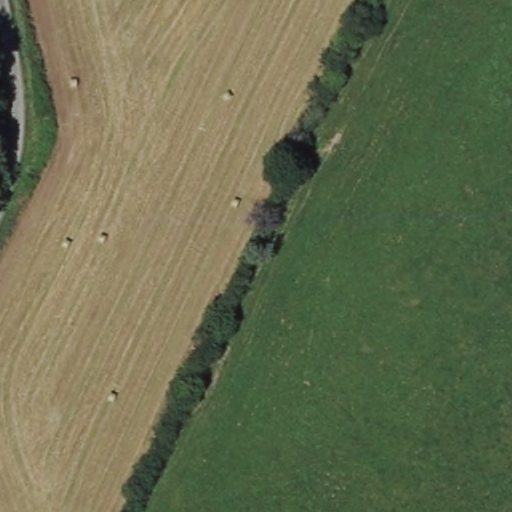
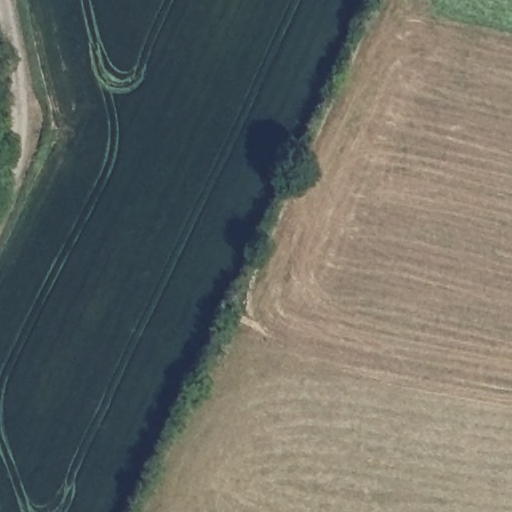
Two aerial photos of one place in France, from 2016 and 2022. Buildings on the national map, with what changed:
[]

